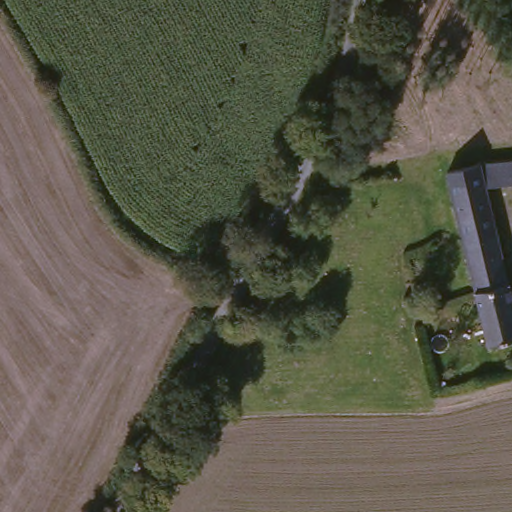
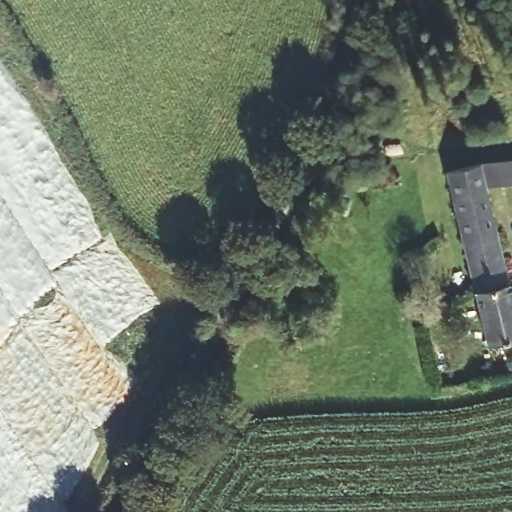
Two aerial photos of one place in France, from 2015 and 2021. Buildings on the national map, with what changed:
unchanged [(512,190),(483,195),(477,174),(512,166),(512,190)]
unchanged [(477,174),(483,195),(502,287),(469,294),(445,180),(477,174)]
unchanged [(506,303),(512,302),(512,345),(482,351),(469,294),(502,287),(506,303)]

